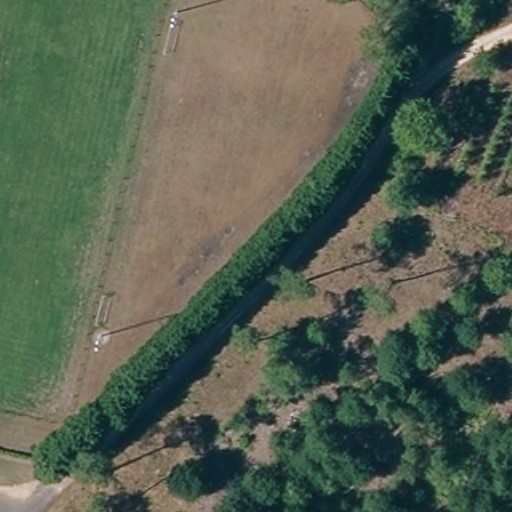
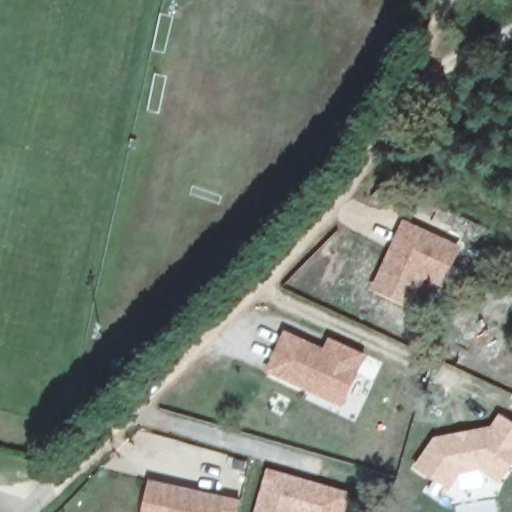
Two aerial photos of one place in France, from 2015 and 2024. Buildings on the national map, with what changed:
new [(461,247),(442,290),(425,283),(413,309),(370,290),(403,220),(461,247)]
new [(323,350),(328,338),(365,354),(342,408),(265,372),(284,331),(323,350)]
new [(491,427),(499,414),(512,422),(512,467),(501,484),(482,472),(460,475),(448,493),(412,468),(434,437),(491,427)]
new [(346,495),(341,512),(257,512),(268,472),(346,495)]
new [(240,502),(238,512),(141,512),(148,480),(240,502)]

